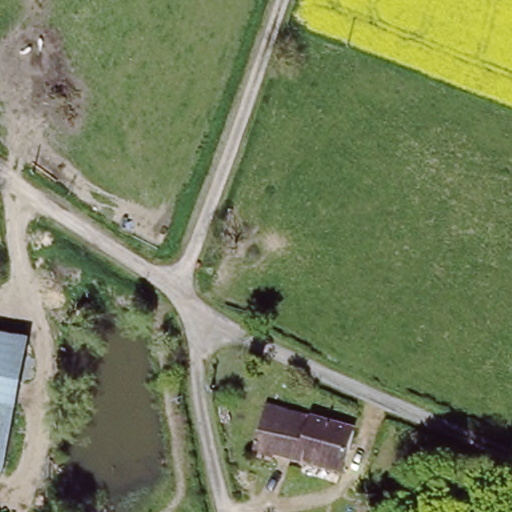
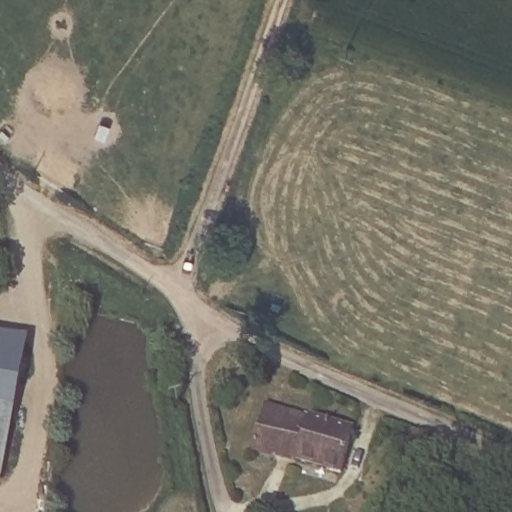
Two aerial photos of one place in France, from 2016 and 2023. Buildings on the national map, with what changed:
unchanged [(26,341),(0,475),(0,335),(26,341)]
unchanged [(250,397),(363,432),(351,476),(238,442),(250,397)]

